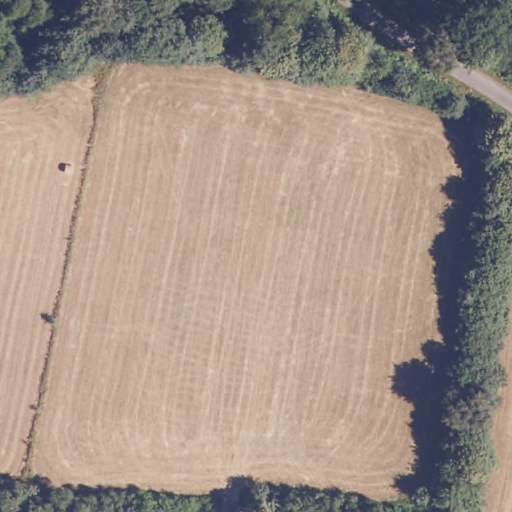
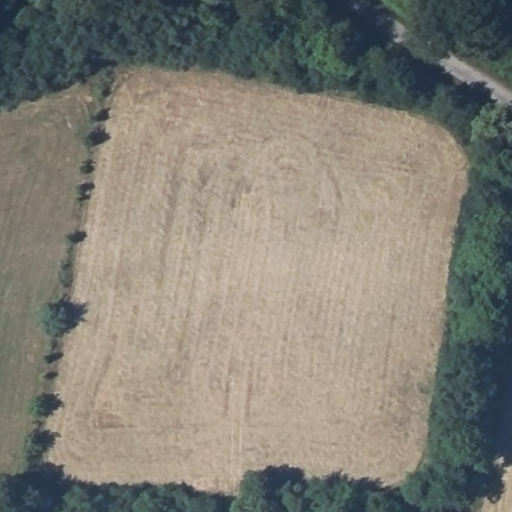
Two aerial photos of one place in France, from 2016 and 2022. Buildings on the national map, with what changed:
[]

